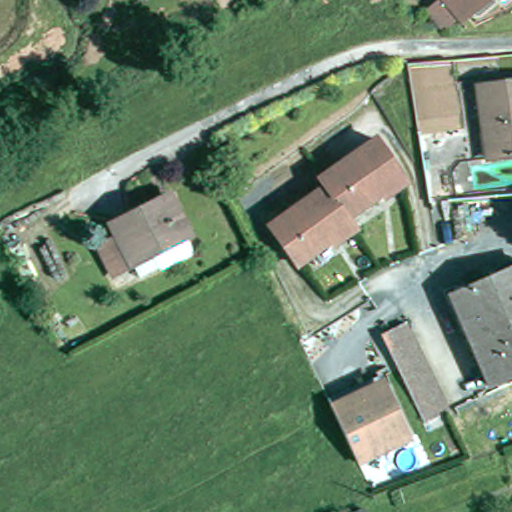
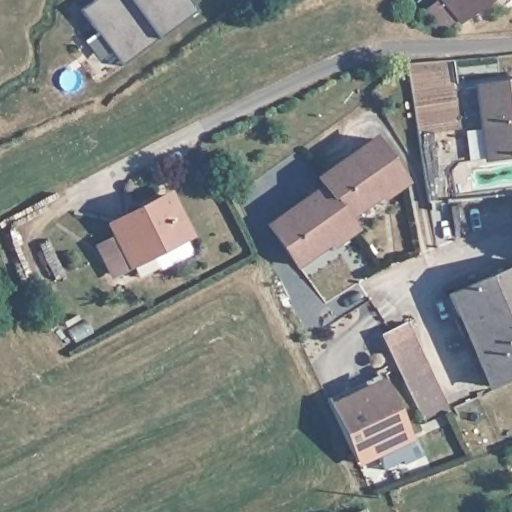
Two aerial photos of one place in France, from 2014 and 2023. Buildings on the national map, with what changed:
new [(195,11),(125,65),(82,11),(97,0),(186,0),(195,11)]
unchanged [(443,0),(493,0),(467,21),(463,17),(447,31),(430,11),(443,0)]
unchanged [(492,133),(487,133),(480,91),(512,87),(512,161),(497,163),(492,133)]
unchanged [(375,138),(404,178),(347,217),(325,185),(319,177),(375,138)]
unchanged [(297,265),(269,225),(325,185),(347,217),(353,225),(297,265)]
unchanged [(123,232),(116,219),(173,190),(194,229),(188,232),(195,244),(192,249),(168,262),(160,246),(137,259),(119,268),(105,242),(123,232)]
unchanged [(450,295),(493,275),(512,266),(512,376),(492,385),(468,334),(450,295)]
unchanged [(390,357),(378,364),(369,345),(381,338),(382,340),(392,335),(405,328),(449,416),(425,427),(390,357)]
unchanged [(382,380),(412,446),(354,472),(325,407),(382,380)]

